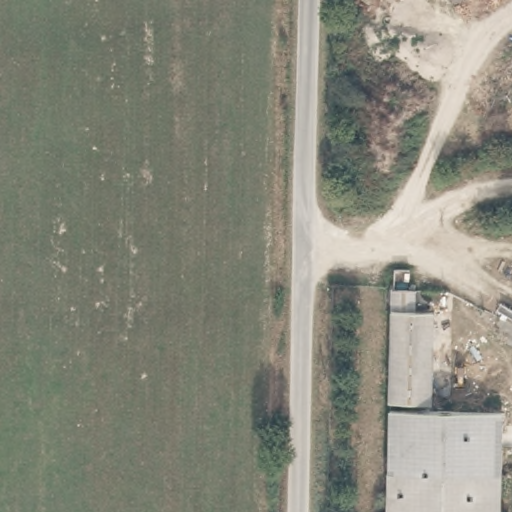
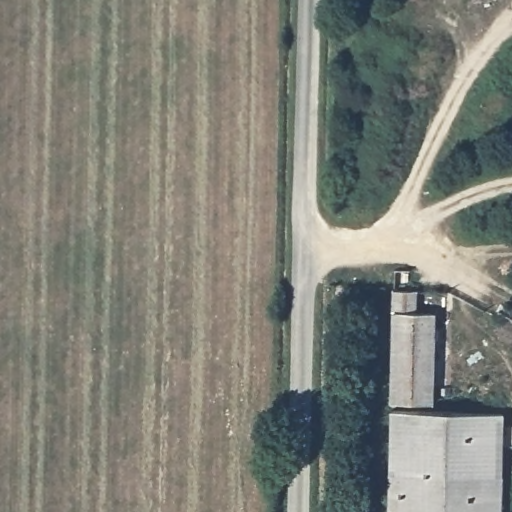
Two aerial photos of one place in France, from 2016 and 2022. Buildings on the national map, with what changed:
unchanged [(416,293),(416,315),(433,316),(431,407),(391,406),(393,315),(394,293),(416,293)]
unchanged [(391,412),(504,412),(501,473),(389,471),(391,412)]
unchanged [(501,476),(500,512),(387,512),(389,474),(389,471),(501,473),(501,476)]

